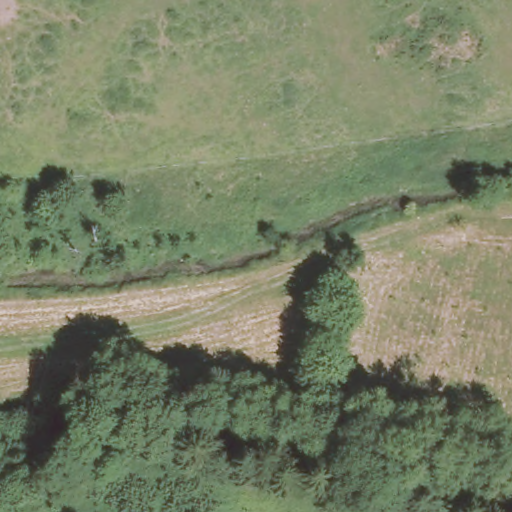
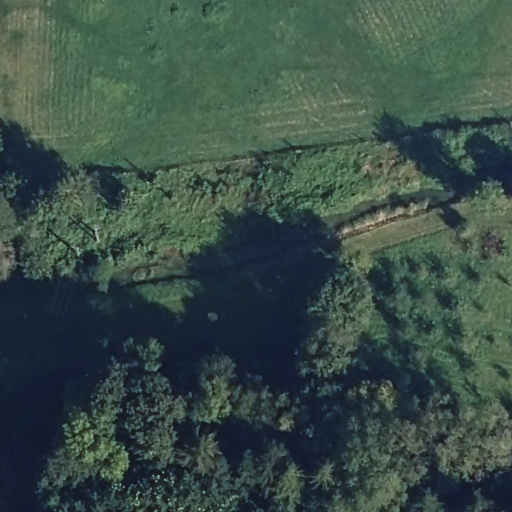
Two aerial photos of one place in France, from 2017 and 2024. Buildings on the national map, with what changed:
[]

